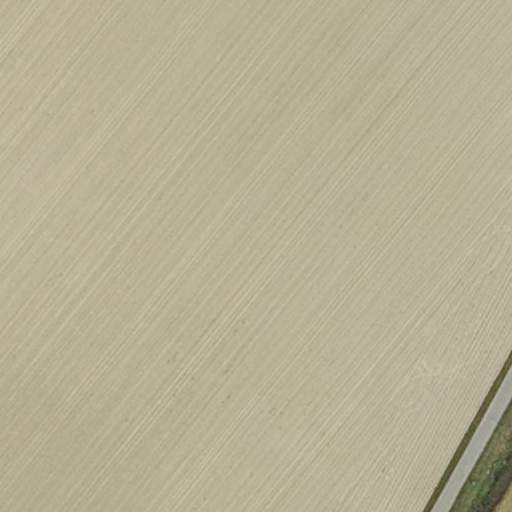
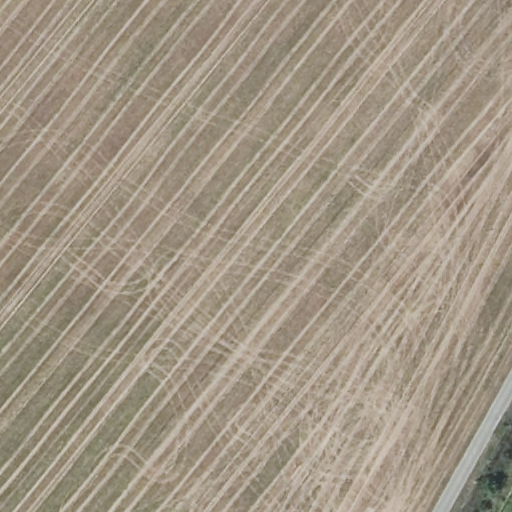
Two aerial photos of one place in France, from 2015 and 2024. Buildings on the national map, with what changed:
[]

